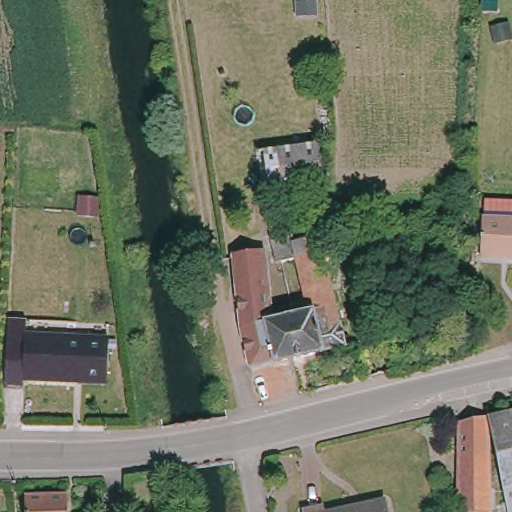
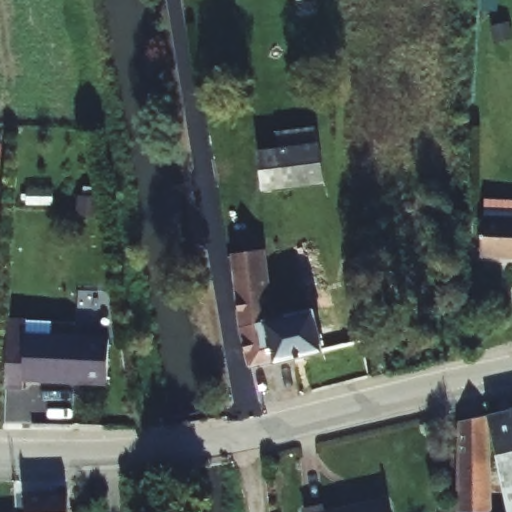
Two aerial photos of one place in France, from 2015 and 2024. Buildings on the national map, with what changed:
unchanged [(334,182),(274,190),(269,150),(328,142),(334,182)]
unchanged [(479,257),(481,217),(512,217),(512,257),(479,257)]
unchanged [(293,334),(291,328),(299,326),(296,317),(293,302),(310,298),(301,257),(279,261),(279,258),(274,236),(294,232),(297,241),(319,236),(339,321),(344,320),(350,344),(329,350),(329,352),(299,359),(293,334)]
unchanged [(244,329),(238,255),(264,253),(263,238),(274,236),(279,258),(279,261),(266,265),(270,307),(293,302),(296,317),(299,326),(291,328),(293,334),(299,359),(278,364),(278,362),(254,368),(244,329)]
unchanged [(111,381),(28,378),(28,336),(113,339),(111,381)]
unchanged [(493,413),(512,408),(512,510),(493,413)]
unchanged [(493,413),(493,508),(461,508),(462,417),(493,413)]
unchanged [(65,491),(67,512),(27,512),(26,492),(65,491)]
unchanged [(387,512),(330,512),(384,501),(387,512)]
unchanged [(323,507),(324,512),(305,512),(305,510),(323,507)]

